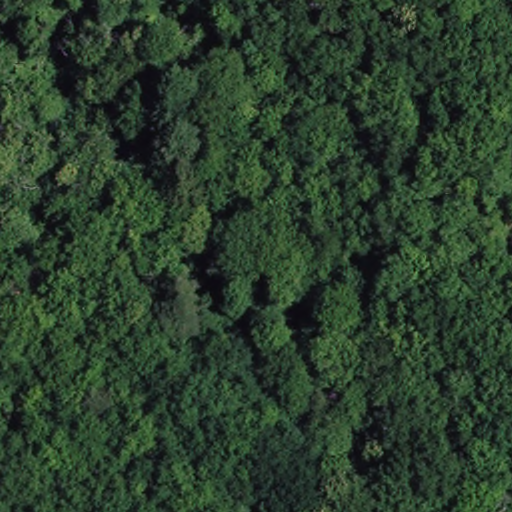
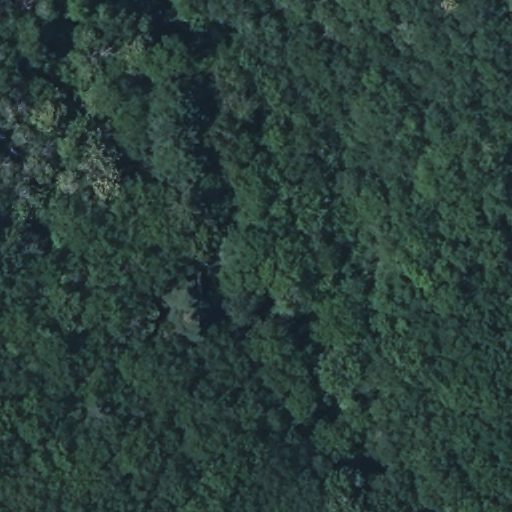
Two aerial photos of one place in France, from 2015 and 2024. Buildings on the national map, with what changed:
unchanged [(181,248),(192,286),(170,292),(158,252),(181,248)]

